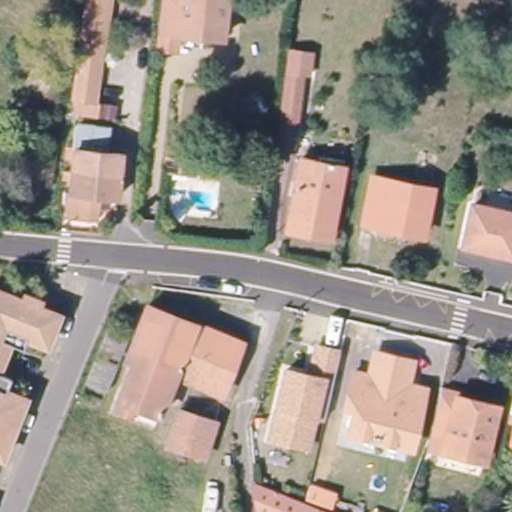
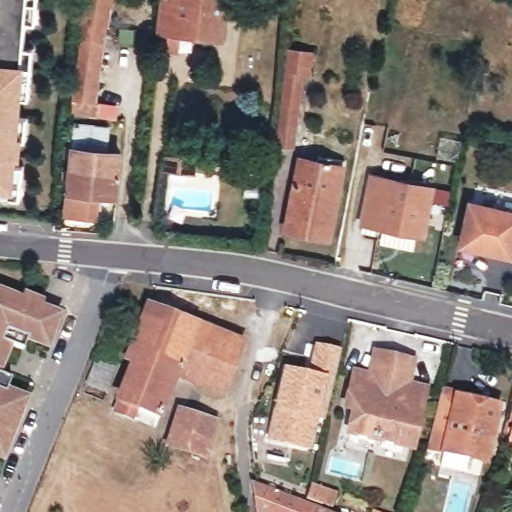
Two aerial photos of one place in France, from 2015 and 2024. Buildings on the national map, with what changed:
new [(23,64),(26,65),(21,136),(25,136),(24,160),(19,160),(14,192),(0,191),(0,0),(28,0),(23,64)]
unchanged [(74,112),(85,0),(108,0),(105,26),(102,26),(94,99),(99,100),(97,115),(74,112)]
unchanged [(219,39),(160,33),(164,0),(224,0),(219,39)]
unchanged [(290,58),(305,60),(298,121),(297,132),(283,130),(284,119),(290,58)]
unchanged [(78,125),(95,126),(93,151),(119,154),(115,195),(88,193),(86,214),(66,212),(78,125)]
unchanged [(348,155),(334,233),(289,224),(302,153),(326,158),(328,151),(348,155)]
unchanged [(431,178),(409,174),(413,152),(436,156),(431,178)]
unchanged [(194,156),(193,169),(165,166),(166,153),(194,156)]
unchanged [(429,187),(420,234),(364,222),(373,175),(429,187)]
unchanged [(512,213),(512,254),(466,244),(475,205),(512,213)]
unchanged [(39,335),(23,329),(19,340),(5,335),(0,347),(0,284),(52,305),(39,335)]
unchanged [(118,410),(123,397),(131,375),(139,358),(131,354),(154,302),(244,338),(224,388),(180,370),(161,414),(144,407),(140,405),(136,417),(118,410)]
unchanged [(86,382),(92,368),(109,329),(131,338),(114,378),(108,392),(86,382)]
unchanged [(400,360),(417,364),(403,423),(342,408),(347,385),(339,383),(347,348),(364,352),(369,329),(406,338),(400,360)]
unchanged [(323,419),(313,417),(305,446),(268,437),(285,369),(309,375),(317,346),(339,351),(323,419)]
unchanged [(0,437),(0,381),(19,388),(0,437)]
unchanged [(490,401),(489,407),(495,408),(483,457),(424,444),(427,437),(439,389),(477,398),(490,401)]
unchanged [(217,414),(206,451),(173,441),(184,404),(217,414)]
unchanged [(259,481),(284,491),(336,512),(266,512),(263,511),(259,481)]

